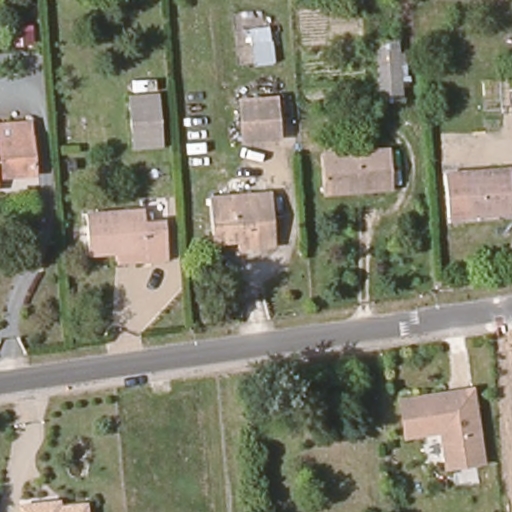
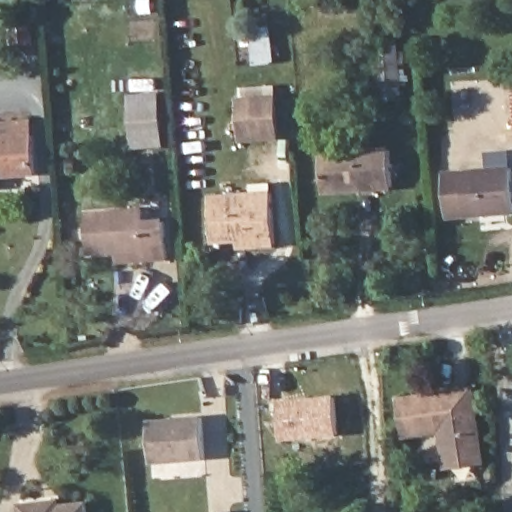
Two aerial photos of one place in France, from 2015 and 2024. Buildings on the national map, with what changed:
unchanged [(256,66),(248,28),(270,24),(277,65),(256,66)]
unchanged [(375,48),(408,46),(411,84),(405,85),(406,103),(381,104),(375,48)]
unchanged [(135,151),(131,98),(163,94),(167,149),(135,151)]
unchanged [(246,138),(242,98),(276,94),(280,134),(246,138)]
unchanged [(0,169),(0,130),(32,128),(37,168),(0,169)]
unchanged [(326,159),(394,154),(398,192),(328,198),(326,159)]
unchanged [(457,170),(507,169),(508,209),(459,211),(457,170)]
unchanged [(215,229),(213,196),(276,192),(279,243),(238,245),(237,238),(217,238),(215,229)]
unchanged [(124,253),(86,255),(83,218),(142,212),(144,225),(164,223),(165,262),(146,262),(125,263),(124,253)]
unchanged [(461,389),(477,388),(487,462),(450,467),(445,429),(410,434),(405,397),(451,391),(461,389)]
new [(339,436),(281,442),(276,401),(335,396),(339,436)]
new [(152,464),(149,421),(201,417),(205,460),(152,464)]
unchanged [(84,512),(20,512),(20,503),(39,502),(60,498),(60,508),(84,506),(84,512)]

